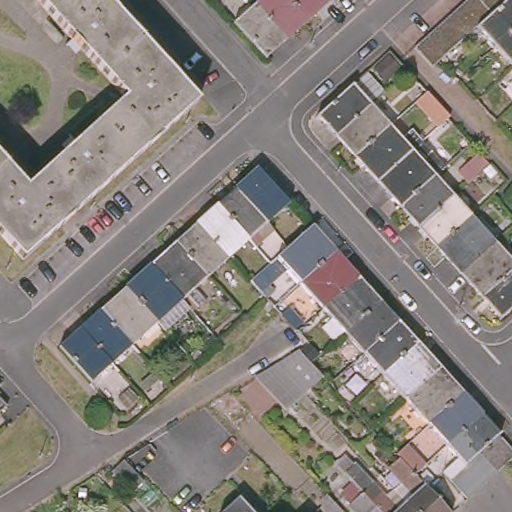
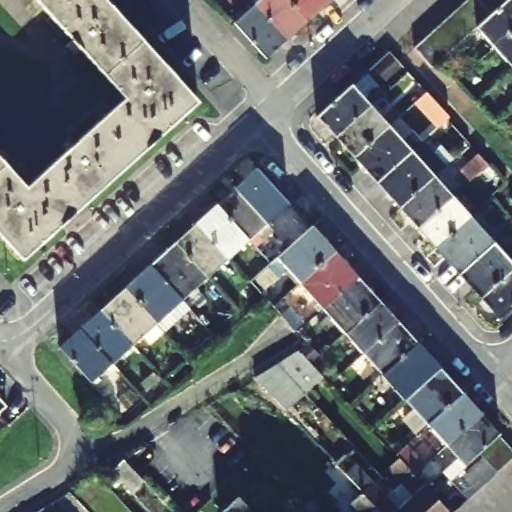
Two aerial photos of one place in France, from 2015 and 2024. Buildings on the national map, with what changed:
unchanged [(86,202),(52,165),(126,97),(38,0),(107,0),(197,101),(86,202)]
unchanged [(255,4),(258,0),(288,0),(306,20),(286,37),(255,4)]
unchanged [(306,20),(288,0),(328,0),(306,20)]
unchanged [(424,37),(434,29),(444,20),(454,11),(464,2),(466,0),(512,0),(512,32),(496,47),(477,26),(471,31),(461,40),(452,48),(442,57),(431,66),(423,57),(414,47),(424,37)]
unchanged [(286,37),(266,55),(235,22),(255,4),(286,37)]
unchanged [(512,32),(512,65),(496,47),(512,32)]
unchanged [(337,135),(318,114),(352,84),(371,105),(337,135)]
unchanged [(443,111),(432,121),(415,102),(426,92),(443,111)]
unchanged [(337,135),(371,105),(389,125),(355,155),(337,135)]
unchanged [(389,125),(412,150),(378,180),(355,155),(389,125)]
unchanged [(401,206),(378,180),(412,150),(434,175),(401,206)]
unchanged [(62,225),(24,258),(0,232),(0,156),(27,187),(62,225)]
unchanged [(86,202),(62,225),(27,187),(52,165),(86,202)]
unchanged [(236,188),(257,168),(289,203),(267,222),(236,188)]
unchanged [(401,206),(434,175),(452,196),(419,226),(401,206)]
unchanged [(236,188),(267,222),(248,240),(217,205),(236,188)]
unchanged [(437,246),(419,226),(452,196),(471,216),(437,246)]
unchanged [(217,205),(248,240),(227,258),(196,224),(217,205)]
unchanged [(461,272),(437,246),(471,216),(494,242),(461,272)]
unchanged [(196,224),(227,258),(207,277),(176,242),(196,224)]
unchanged [(280,254),(289,247),(311,227),(334,253),(304,281),(280,254)]
unchanged [(183,299),(152,265),(176,242),(207,277),(183,299)]
unchanged [(484,297),(461,272),(494,242),(512,262),(512,271),(484,297)]
unchanged [(304,281),(334,253),(357,278),(326,306),(304,281)]
unchanged [(126,288),(152,265),(183,299),(157,322),(126,288)]
unchanged [(512,271),(512,309),(502,318),(484,297),(512,271)]
unchanged [(326,306),(357,278),(380,303),(349,331),(326,306)]
unchanged [(131,346),(100,312),(126,288),(157,322),(131,346)]
unchanged [(349,331),(380,303),(398,324),(367,351),(349,331)]
unchanged [(80,330),(100,312),(131,346),(111,363),(80,330)]
unchanged [(386,372),(367,351),(398,324),(417,344),(386,372)]
unchanged [(111,363),(91,382),(77,367),(60,348),(80,330),(111,363)]
unchanged [(408,397),(386,372),(417,344),(439,369),(408,397)]
unchanged [(305,392),(287,408),(254,374),(276,360),(282,356),(297,347),(312,363),(322,375),(304,391),(305,392)]
unchanged [(439,369),(462,395),(432,422),(408,397),(439,369)]
unchanged [(450,442),(432,422),(462,395),(480,415),(450,442)]
unchanged [(0,414),(0,398),(8,407),(0,414)]
unchanged [(460,470),(468,462),(450,442),(480,415),(499,435),(508,446),(512,450),(512,459),(497,472),(487,481),(477,490),(467,498),(450,480),(460,470)]
unchanged [(341,462),(352,452),(402,506),(410,499),(422,512),(388,512),(357,478),(355,477),(341,462)]
unchanged [(406,495),(400,488),(397,486),(405,479),(393,467),(404,458),(419,475),(427,482),(437,495),(444,501),(454,512),(422,512),(410,499),(406,495)]
unchanged [(144,479),(130,491),(112,473),(126,460),(144,479)]
unchanged [(357,478),(388,512),(363,512),(343,491),(357,478)]
unchanged [(334,494),(350,512),(335,512),(326,501),(334,494)]
unchanged [(258,512),(227,512),(244,496),(258,512)]

